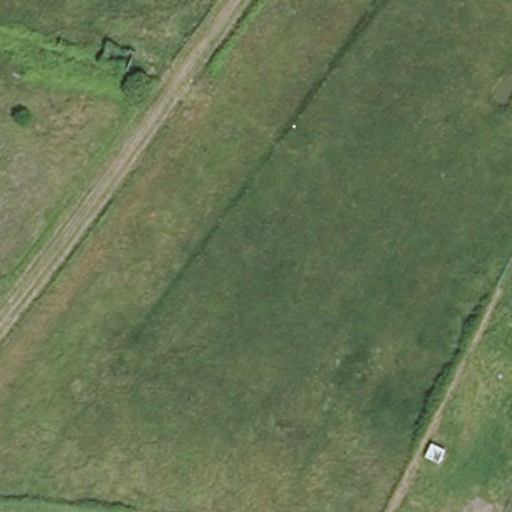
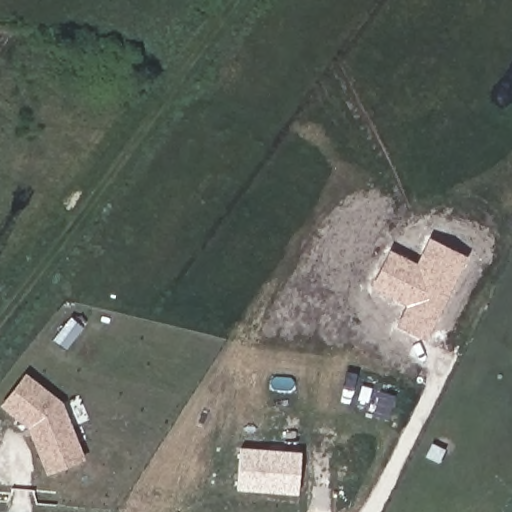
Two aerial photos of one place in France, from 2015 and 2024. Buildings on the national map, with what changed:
unchanged [(126,77),(99,64),(108,41),(138,52),(126,77)]
new [(406,305),(371,288),(389,250),(416,263),(429,238),(466,256),(426,340),(396,326),(406,305)]
demolished [(502,336),(512,336),(512,357),(500,356),(502,336)]
new [(63,402),(85,459),(45,474),(27,428),(0,406),(0,405),(25,372),(63,402)]
new [(300,452),(296,495),(236,490),(239,447),(300,452)]

